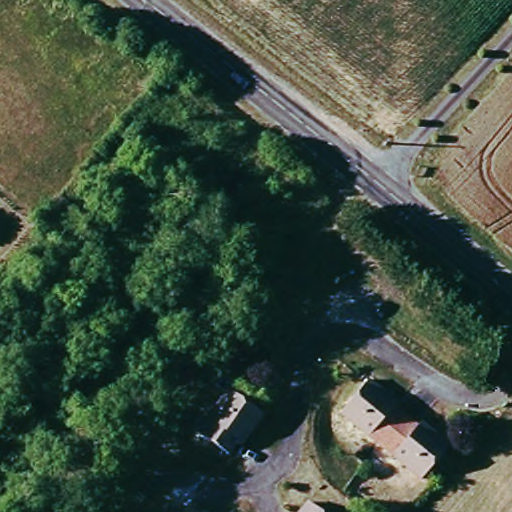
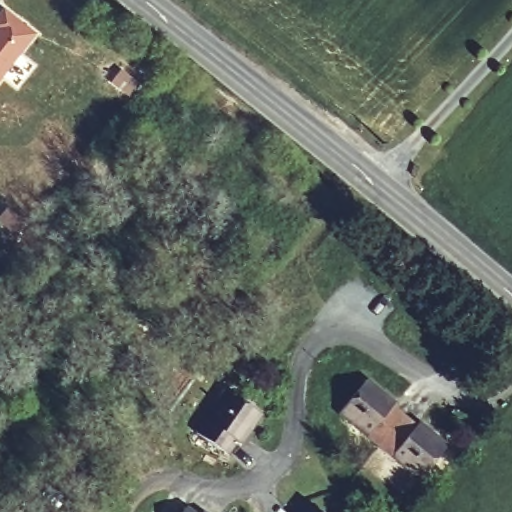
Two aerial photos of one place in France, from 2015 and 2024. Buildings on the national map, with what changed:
new [(36,34),(0,81),(0,10),(2,7),(36,34)]
new [(120,67),(141,84),(129,98),(109,81),(120,67)]
unchanged [(369,376),(392,395),(388,400),(414,421),(418,417),(449,445),(418,479),(336,410),(369,376)]
unchanged [(196,429),(226,390),(256,414),(226,455),(196,429)]
unchanged [(320,512),(305,512),(311,504),(320,512)]
unchanged [(196,512),(186,512),(189,507),(196,512)]

